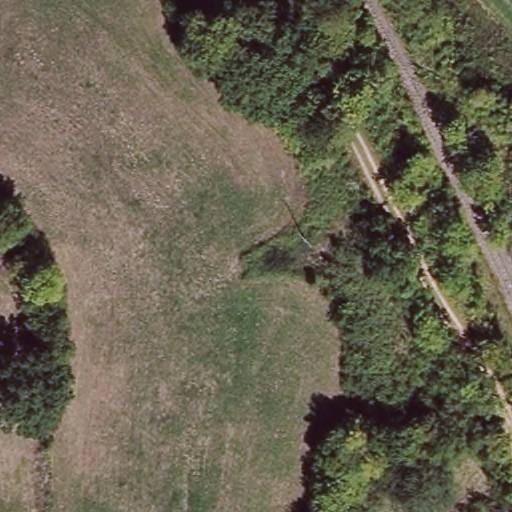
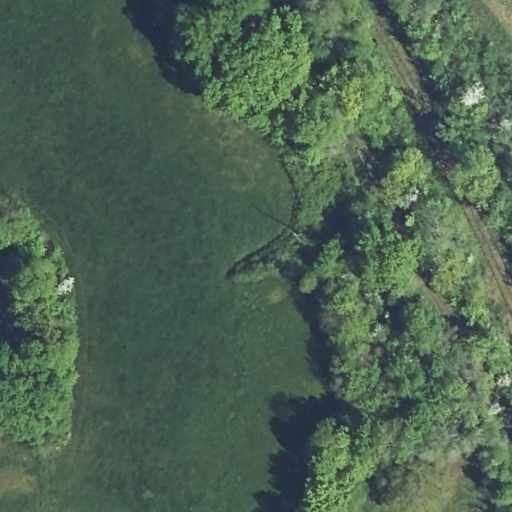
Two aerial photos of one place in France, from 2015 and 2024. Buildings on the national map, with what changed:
[]

